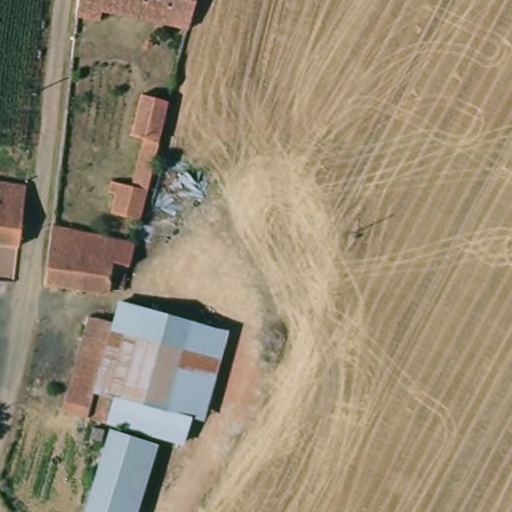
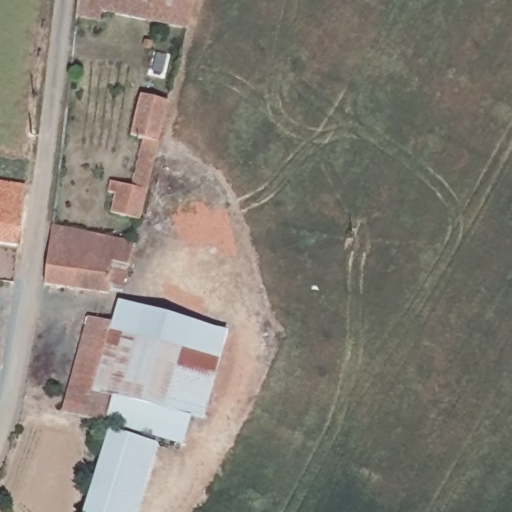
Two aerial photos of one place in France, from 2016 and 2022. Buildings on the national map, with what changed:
unchanged [(99,10),(97,20),(72,15),(75,0),(191,0),(184,28),(99,10)]
unchanged [(126,136),(136,94),(163,101),(152,142),(139,139),(126,136)]
unchanged [(105,215),(110,195),(104,193),(105,181),(127,186),(139,139),(152,142),(155,143),(136,221),(105,215)]
unchanged [(0,180),(19,183),(19,186),(15,218),(11,241),(0,240),(0,180)]
unchanged [(40,275),(45,227),(130,244),(124,268),(107,265),(102,294),(38,285),(40,275)]
unchanged [(100,422),(56,410),(82,314),(106,320),(113,299),(222,331),(200,420),(190,417),(180,444),(100,422)]
unchanged [(104,428),(155,443),(134,512),(78,512),(104,428)]

